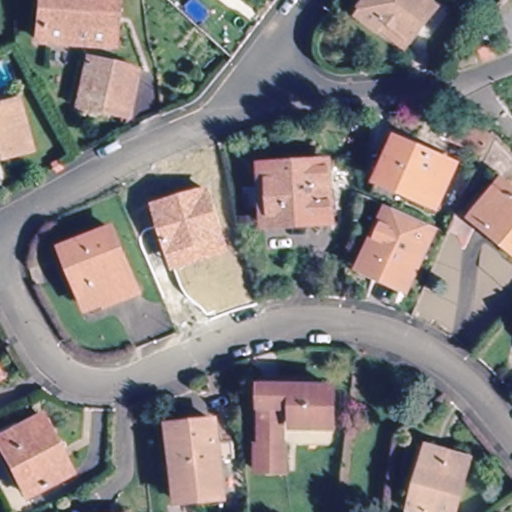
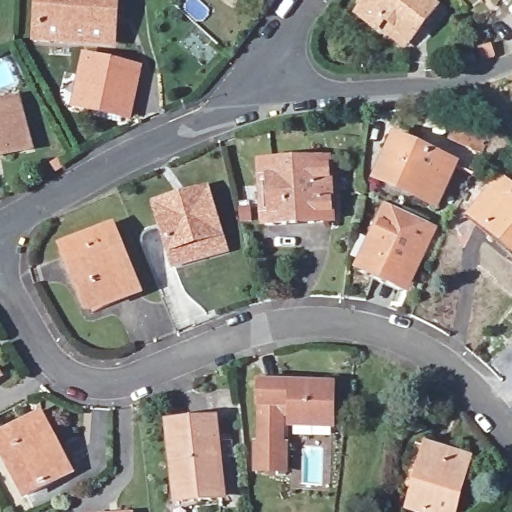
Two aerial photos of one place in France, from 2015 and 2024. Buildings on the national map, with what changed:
unchanged [(112,47),(39,41),(42,0),(115,0),(112,47)]
unchanged [(377,28),(359,14),(369,0),(430,0),(438,7),(414,37),(405,50),(377,28)]
unchanged [(455,54),(469,48),(474,58),(460,64),(455,54)]
unchanged [(75,112),(87,62),(111,67),(100,118),(75,112)]
unchanged [(139,73),(128,124),(100,118),(111,67),(139,73)]
unchanged [(0,110),(11,107),(23,151),(5,155),(6,162),(0,163),(0,110)]
unchanged [(378,187),(394,147),(453,170),(437,211),(378,187)]
unchanged [(266,228),(261,172),(326,166),(331,222),(266,228)]
unchanged [(504,241),(473,214),(499,183),(512,194),(512,248),(504,241)]
unchanged [(208,186),(229,253),(173,271),(151,203),(208,186)]
unchanged [(376,244),(390,210),(428,226),(402,288),(373,276),(364,272),(376,244)]
unchanged [(61,251),(105,232),(130,291),(86,309),(61,251)]
unchanged [(268,389),(310,389),(310,396),(333,396),(333,432),(294,432),(294,422),(284,422),(283,449),(288,449),(288,476),(257,475),(257,449),(262,449),(262,395),(268,395),(268,389)]
unchanged [(0,446),(0,436),(38,417),(66,473),(24,494),(0,446)]
unchanged [(177,502),(168,427),(213,422),(222,497),(177,502)]
unchanged [(409,490),(419,453),(467,466),(454,512),(415,512),(420,492),(409,490)]

